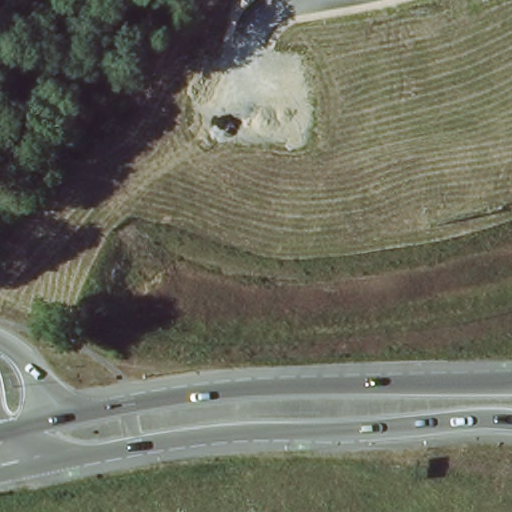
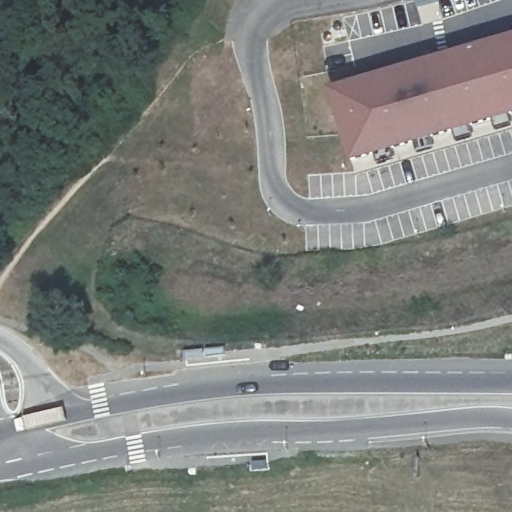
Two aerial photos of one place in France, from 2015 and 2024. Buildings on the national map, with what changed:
new [(512,30),(512,119),(349,170),(324,88),(512,30)]

